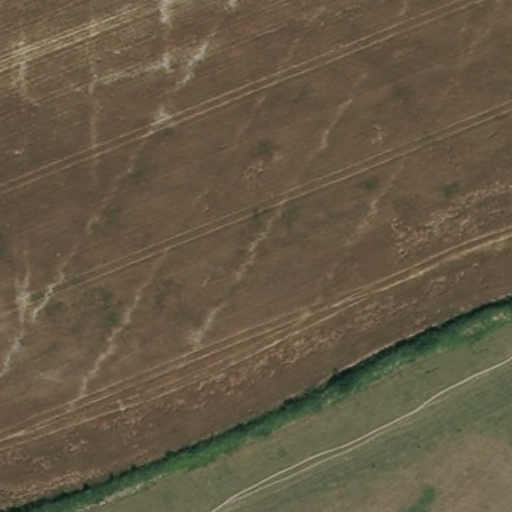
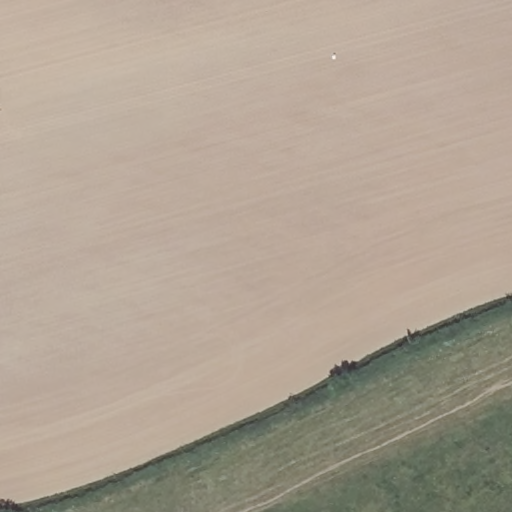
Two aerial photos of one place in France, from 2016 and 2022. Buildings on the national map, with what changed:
[]

